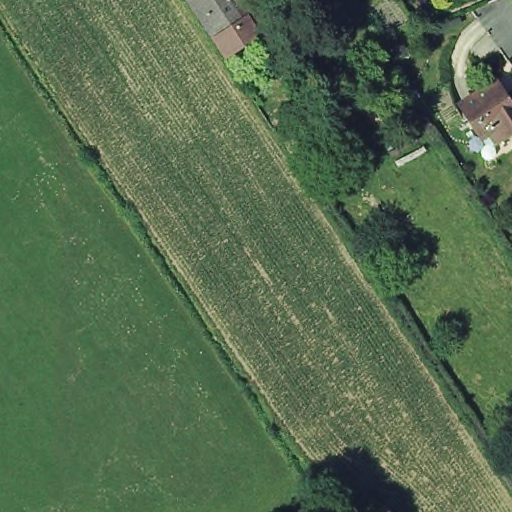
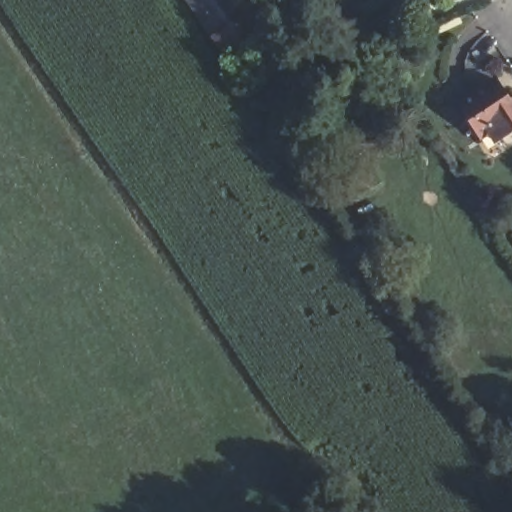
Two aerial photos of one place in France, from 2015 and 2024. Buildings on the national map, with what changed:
unchanged [(180,0),(222,0),(230,12),(241,27),(212,46),(201,31),(180,0)]
unchanged [(512,95),(512,113),(488,129),(482,119),(471,126),(449,95),(486,70),(499,90),(506,85),(512,95)]

